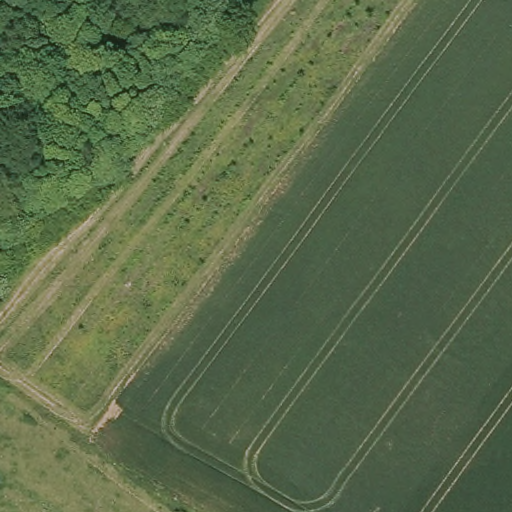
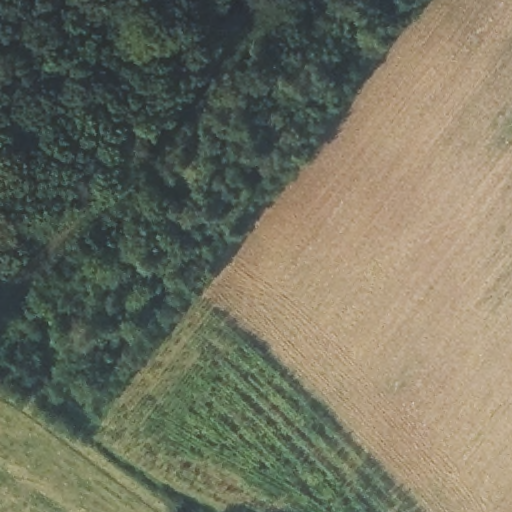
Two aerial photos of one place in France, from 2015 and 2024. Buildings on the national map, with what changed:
[]

